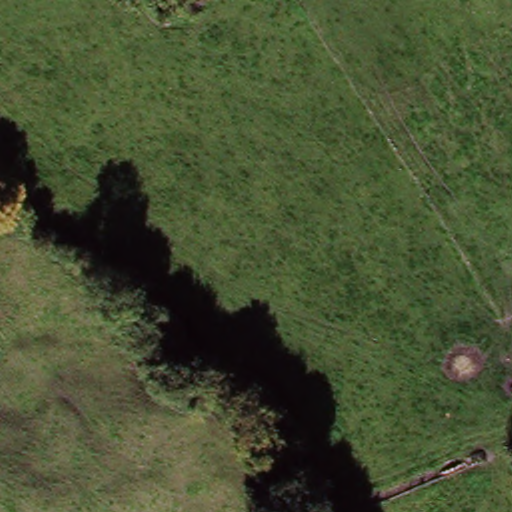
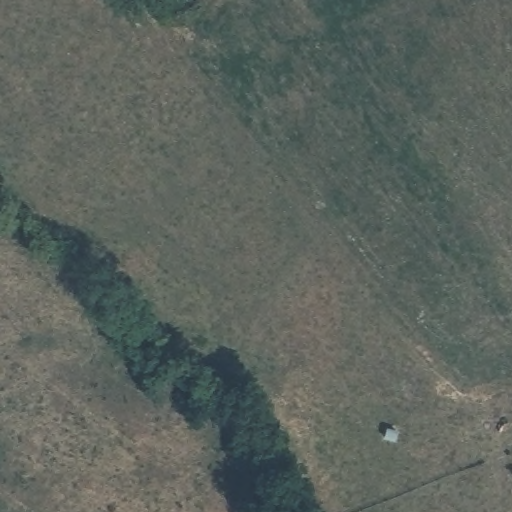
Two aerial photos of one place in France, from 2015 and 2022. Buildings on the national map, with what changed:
[]

